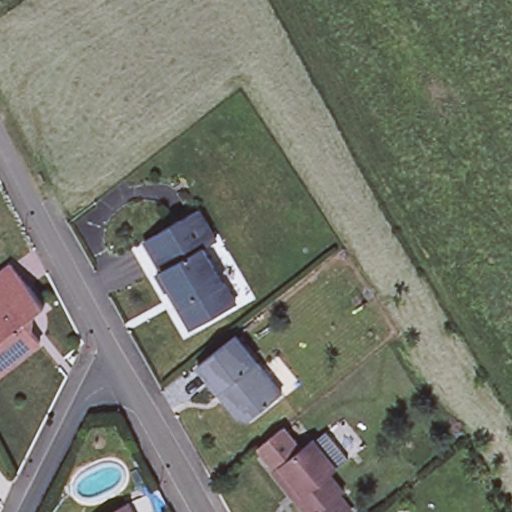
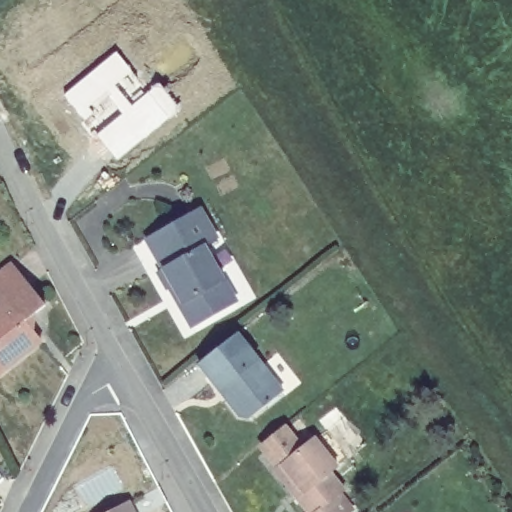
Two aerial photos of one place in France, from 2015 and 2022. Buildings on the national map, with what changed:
new [(117,52),(135,73),(117,86),(132,106),(160,85),(181,111),(118,159),(98,136),(123,114),(107,93),(89,107),(94,113),(84,120),(64,97),(117,52)]
unchanged [(164,265),(149,236),(205,206),(222,237),(207,245),(164,265)]
unchanged [(239,303),(196,327),(173,281),(169,282),(161,267),(164,265),(207,245),(239,303)]
unchanged [(40,307),(26,321),(29,336),(35,342),(0,369),(0,277),(12,269),(40,307)]
unchanged [(195,369),(233,340),(280,397),(249,423),(235,419),(223,404),(214,394),(195,369)]
unchanged [(334,492),(349,511),(347,512),(307,512),(272,468),(276,464),(258,441),(280,425),(298,447),(312,437),(314,440),(324,432),(345,457),(334,465),(326,471),(339,488),(334,492)]
unchanged [(138,512),(107,512),(132,499),(138,512)]

